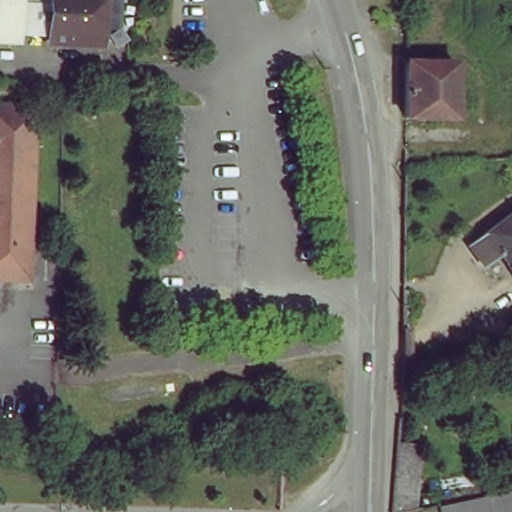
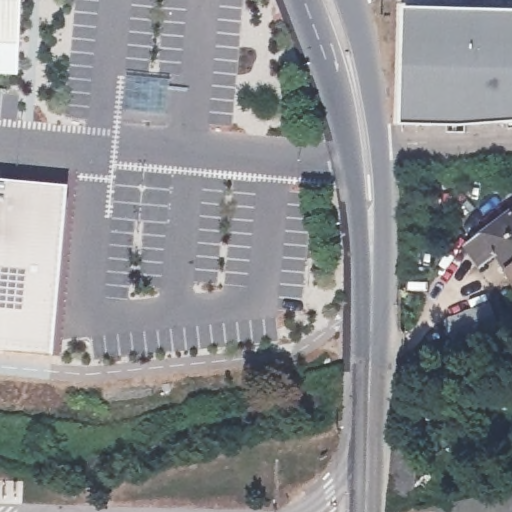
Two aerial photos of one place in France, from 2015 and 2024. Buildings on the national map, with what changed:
unchanged [(17,50),(0,50),(0,0),(19,0),(17,38),(17,50)]
demolished [(50,45),(50,9),(42,9),(30,9),(30,0),(101,0),(100,47),(50,45)]
new [(460,127),(403,125),(405,6),(512,8),(512,123),(460,127)]
demolished [(452,62),(454,115),(405,117),(406,61),(452,62)]
demolished [(0,281),(0,110),(26,110),(20,282),(0,281)]
new [(52,357),(0,353),(0,184),(67,190),(52,357)]
unchanged [(492,261),(480,269),(467,253),(512,220),(512,288),(492,261)]
unchanged [(512,494),(512,512),(432,512),(432,510),(512,494)]

